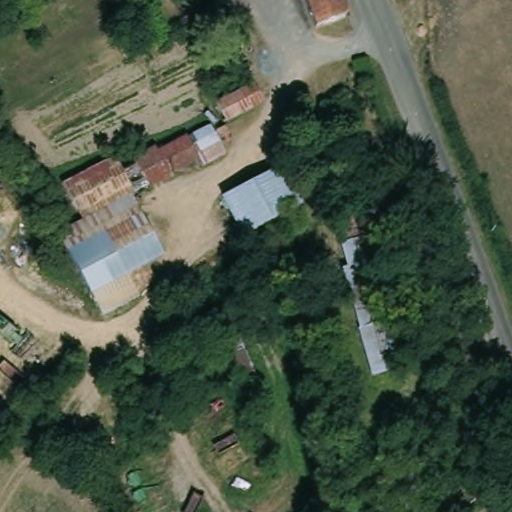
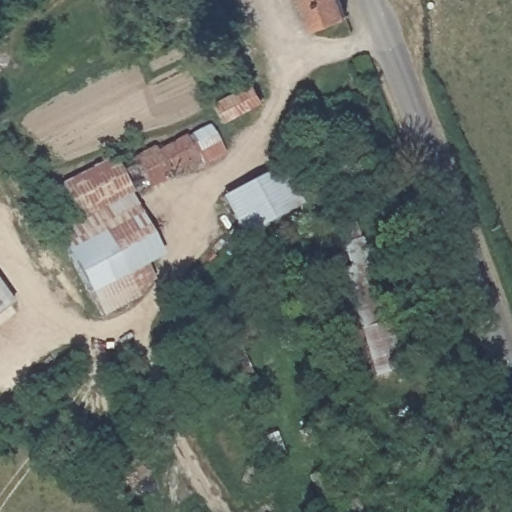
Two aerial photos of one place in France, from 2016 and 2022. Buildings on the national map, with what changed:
unchanged [(186,0),(207,0),(190,8),(186,0)]
unchanged [(308,0),(344,0),(347,8),(347,9),(315,21),(308,0)]
unchanged [(263,101),(235,112),(226,116),(218,99),(253,83),(263,101)]
unchanged [(129,158),(156,145),(161,152),(210,127),(223,154),(203,165),(200,159),(129,196),(81,220),(69,197),(64,188),(116,161),(122,172),(134,166),(129,158)]
unchanged [(283,168),(304,207),(248,236),(228,197),(283,168)]
unchanged [(139,295),(103,314),(57,232),(81,220),(129,196),(159,254),(142,264),(153,283),(144,293),(139,295)]
unchanged [(374,355),(358,294),(363,292),(350,244),(364,241),(378,280),(398,350),(374,355)]
new [(0,313),(0,284),(13,303),(0,313)]
unchanged [(239,335),(263,386),(243,395),(218,344),(239,335)]

